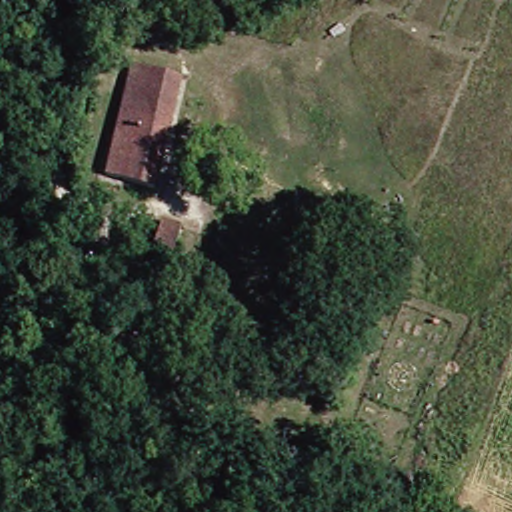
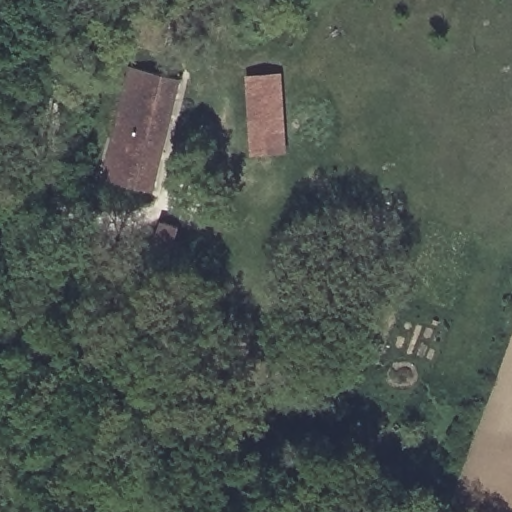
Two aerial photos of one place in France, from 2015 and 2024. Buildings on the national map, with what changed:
unchanged [(182,25),(176,0),(199,0),(203,20),(182,25)]
unchanged [(137,65),(185,75),(180,100),(131,89),(137,65)]
new [(252,154),(247,75),(284,73),(288,153),(252,154)]
unchanged [(111,178),(131,89),(180,100),(160,189),(111,178)]
unchanged [(182,247),(169,243),(176,219),(189,224),(182,247)]

